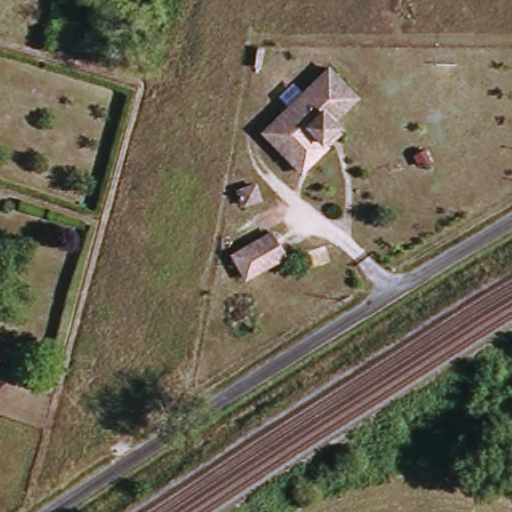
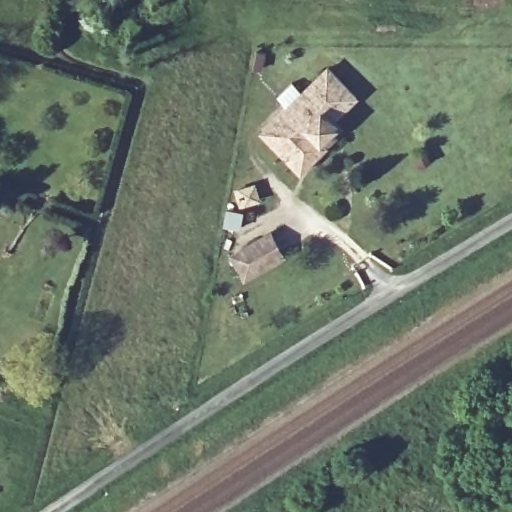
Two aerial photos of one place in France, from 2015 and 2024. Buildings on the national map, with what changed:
unchanged [(320,137),(295,162),(266,134),(331,69),(360,97),(337,121),(342,126),(326,142),(320,137)]
unchanged [(235,187),(258,180),(263,200),(241,207),(235,187)]
unchanged [(247,282),(229,252),(273,226),(289,256),(247,282)]

